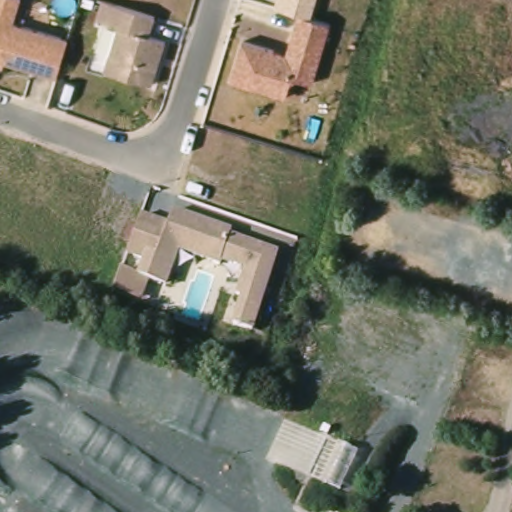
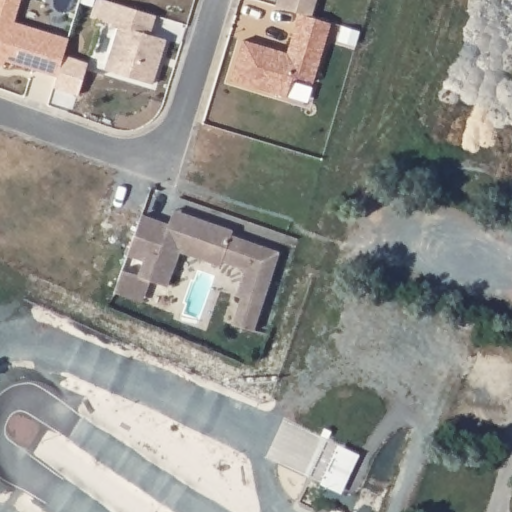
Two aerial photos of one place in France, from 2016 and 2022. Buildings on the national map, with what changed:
unchanged [(0,0),(21,0),(15,17),(70,34),(59,71),(8,55),(6,60),(0,59),(0,0)]
unchanged [(275,0),(318,0),(313,15),(333,22),(315,83),(295,77),(289,98),(231,81),(244,38),(287,51),(298,13),(274,4),(275,0)]
unchanged [(167,37),(161,56),(178,61),(164,107),(116,93),(130,48),(123,46),(129,25),(167,37)]
unchanged [(137,272),(141,259),(128,254),(142,212),(170,221),(174,208),(234,228),(234,232),(280,248),(255,331),(230,323),(240,295),(236,293),(244,266),(223,260),(222,263),(179,250),(168,285),(149,280),(142,300),(114,291),(122,267),(137,272)]
unchanged [(327,498),(353,509),(352,512),(321,512),(327,498)]

